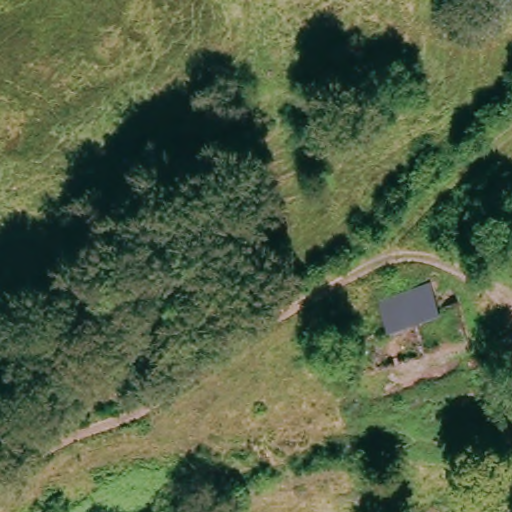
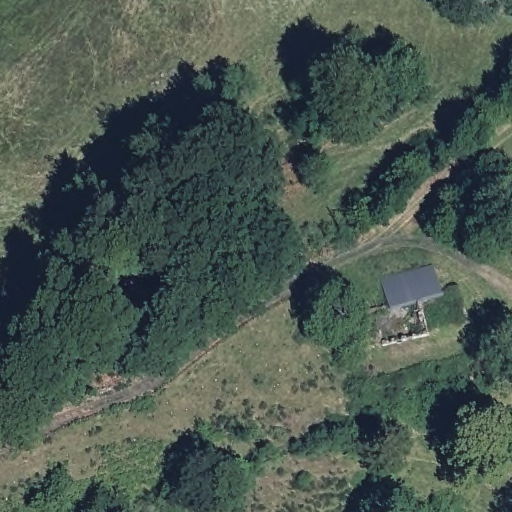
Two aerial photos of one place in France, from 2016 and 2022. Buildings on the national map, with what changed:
unchanged [(441,308),(389,320),(383,288),(434,275),(441,308)]

